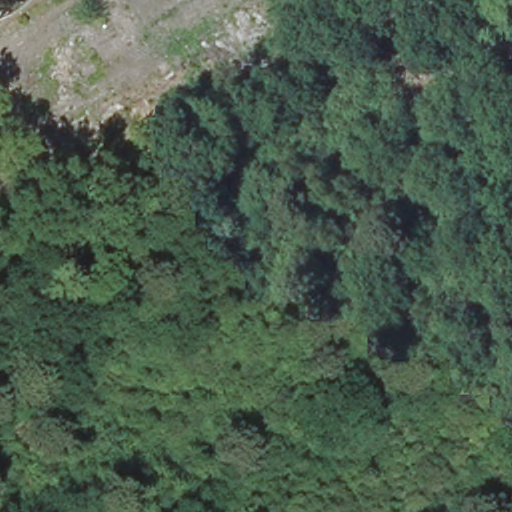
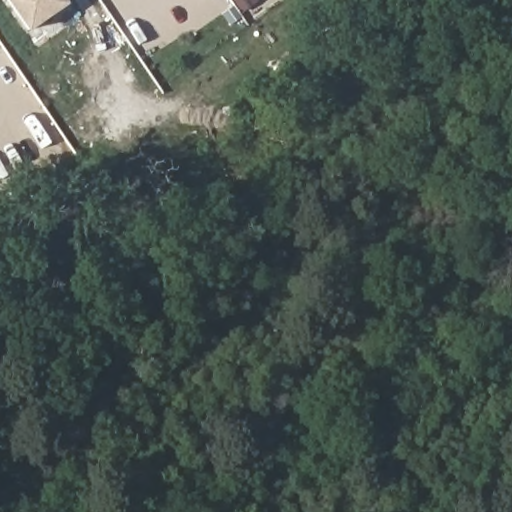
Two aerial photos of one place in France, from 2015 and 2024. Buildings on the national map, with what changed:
new [(28,29),(8,0),(64,0),(66,2),(28,29)]

